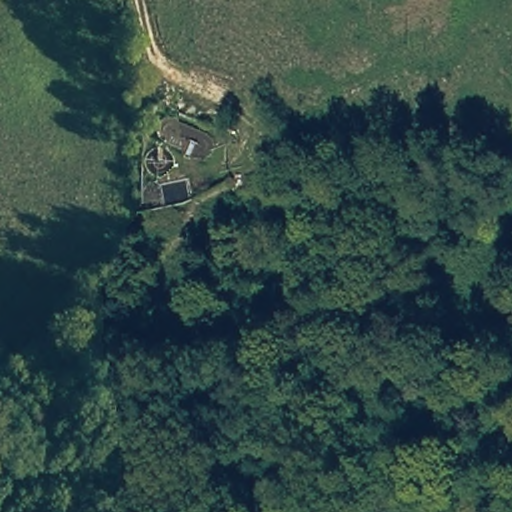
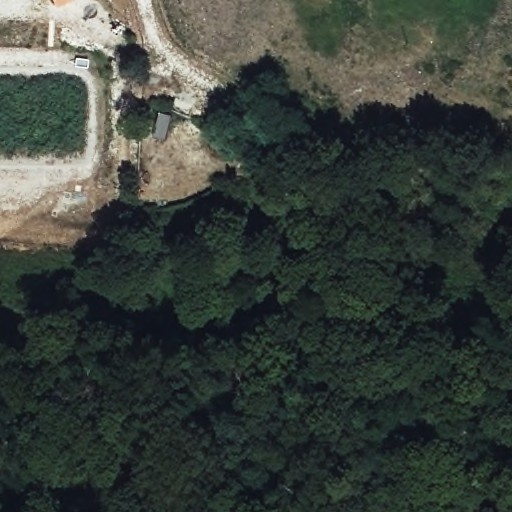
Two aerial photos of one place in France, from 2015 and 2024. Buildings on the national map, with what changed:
new [(72,2),(55,9),(52,0),(71,0),(72,2)]

